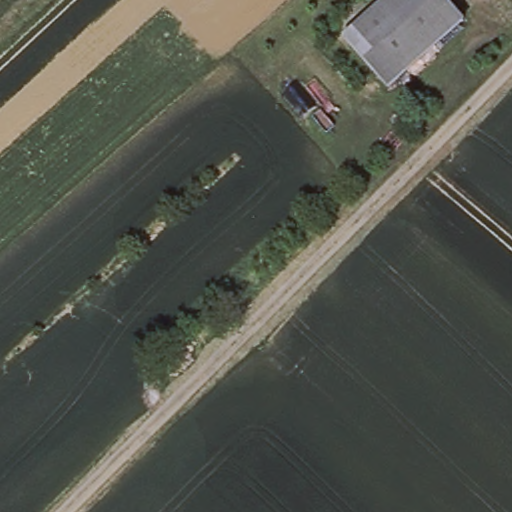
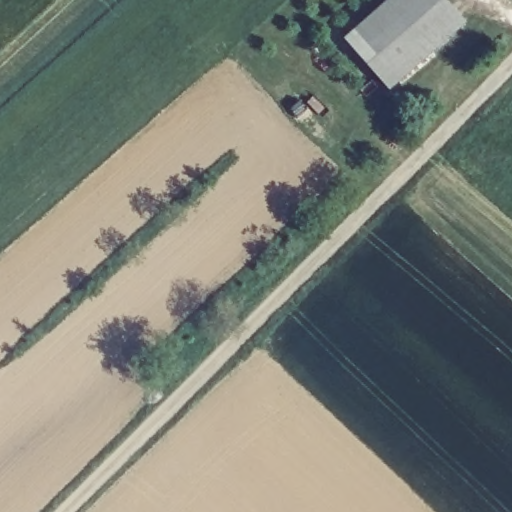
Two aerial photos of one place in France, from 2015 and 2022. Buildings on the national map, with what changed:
unchanged [(463,19),(387,86),(343,36),(385,0),(447,0),(463,19)]

